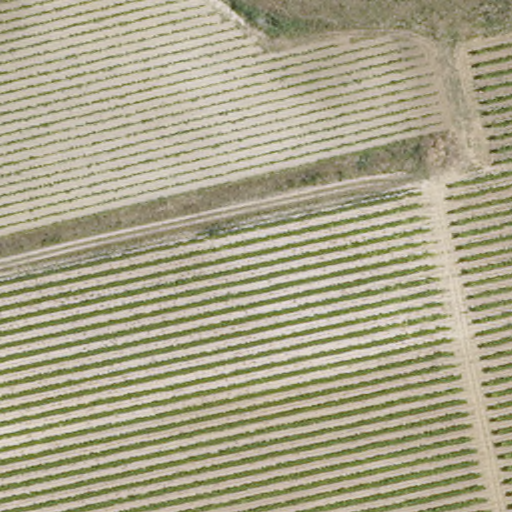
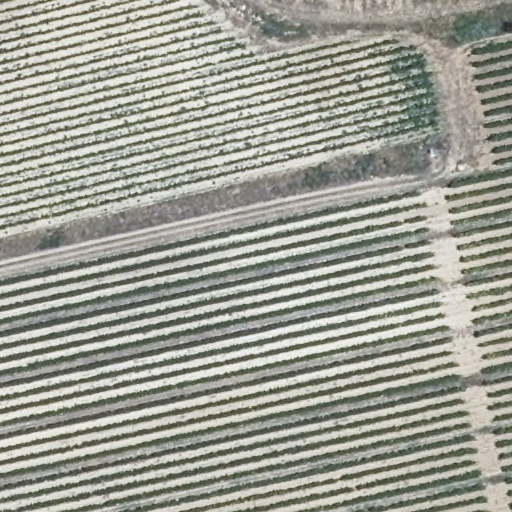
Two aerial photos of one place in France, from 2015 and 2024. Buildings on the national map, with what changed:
[]

